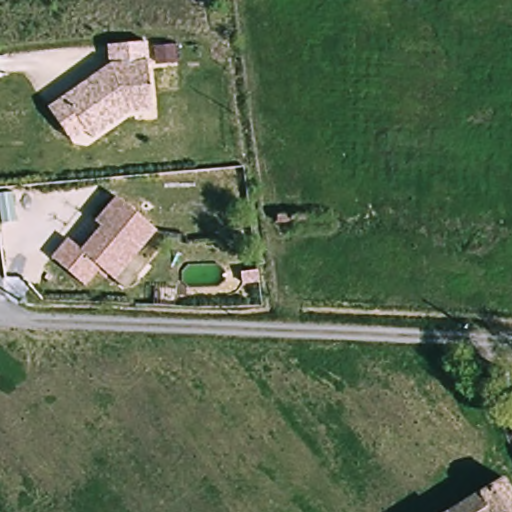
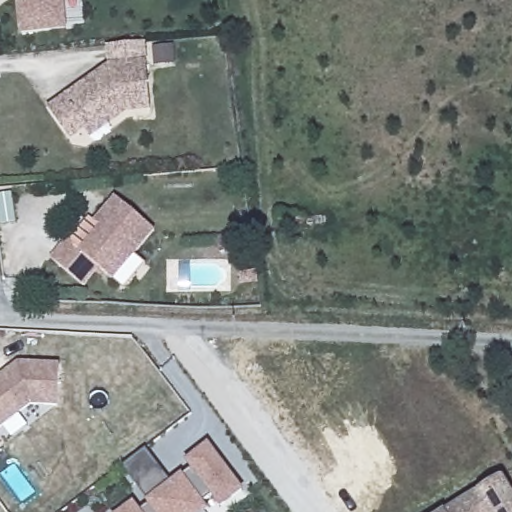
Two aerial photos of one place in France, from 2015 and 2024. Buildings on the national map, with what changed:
new [(19,32),(16,0),(61,0),(64,29),(19,32)]
unchanged [(70,132),(53,107),(116,65),(115,45),(138,42),(152,41),(157,99),(158,109),(134,110),(95,137),(89,129),(74,139),(70,132)]
unchanged [(120,290),(108,280),(95,266),(79,284),(48,255),(65,236),(78,249),(99,226),(93,221),(115,197),(153,231),(131,255),(143,265),(120,290)]
unchanged [(265,278),(265,283),(266,290),(247,292),(246,281),(265,278)]
new [(58,406),(31,405),(0,429),(0,376),(19,361),(61,364),(58,406)]
new [(150,508),(148,506),(173,488),(182,480),(193,472),(188,465),(209,450),(244,495),(223,510),(215,500),(204,508),(207,512),(144,512),(150,508)]
new [(146,452),(173,488),(148,506),(122,471),(146,452)]
unchanged [(501,479),(512,498),(512,512),(447,512),(501,479)]
new [(136,512),(128,512),(133,508),(136,512)]

